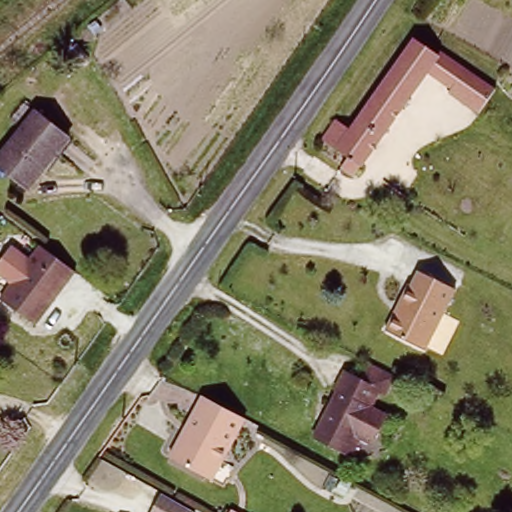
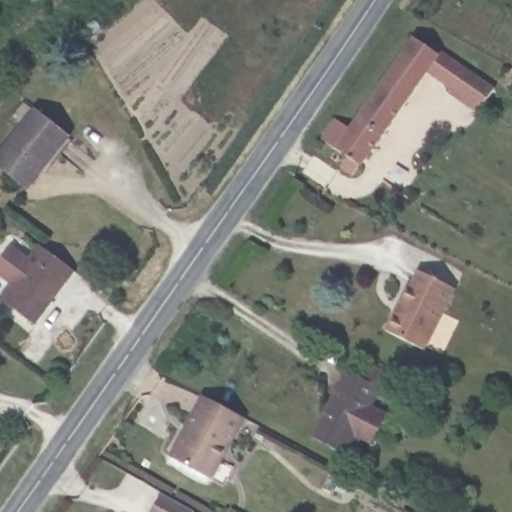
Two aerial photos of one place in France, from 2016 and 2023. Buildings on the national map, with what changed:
unchanged [(475,73),(463,90),(439,73),(374,165),(371,163),(370,166),(365,172),(352,164),(359,155),(337,140),(334,138),(347,118),(362,128),(427,37),(452,55),(455,51),(490,75),(485,81),(475,73)]
unchanged [(47,170),(42,167),(30,185),(0,164),(0,157),(34,110),(70,135),(47,170)]
unchanged [(73,272),(34,324),(0,298),(39,246),(73,272)]
unchanged [(424,344),(385,324),(410,278),(413,279),(421,264),(457,282),(444,306),(427,340),(424,344)]
unchanged [(390,377),(380,398),(376,396),(356,435),(358,436),(346,459),(309,440),(332,394),(330,393),(340,372),(358,381),(367,364),(390,377)]
unchanged [(207,479),(161,455),(185,410),(194,393),(201,397),(240,418),(207,479)]
unchanged [(155,512),(162,502),(175,512),(155,512)]
unchanged [(119,512),(116,512),(117,510),(119,512)]

